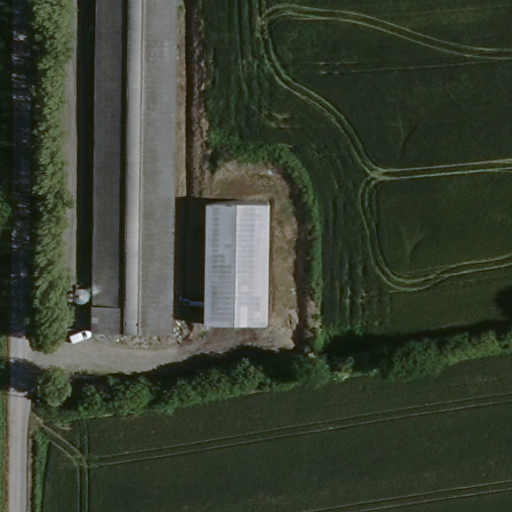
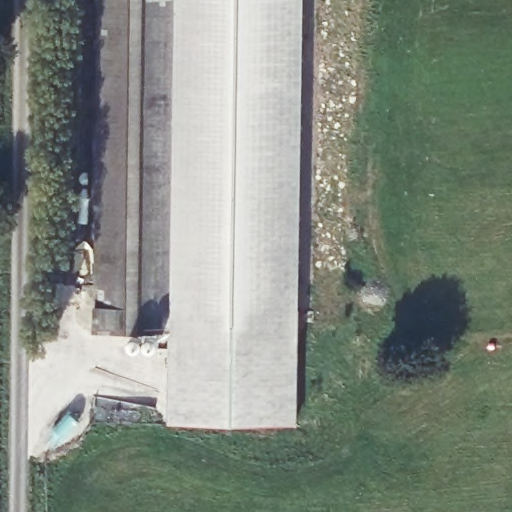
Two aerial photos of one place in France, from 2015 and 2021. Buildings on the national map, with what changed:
unchanged [(95,0),(174,0),(171,338),(92,337),(95,0)]
new [(169,422),(171,338),(174,0),(303,0),(297,423),(169,422)]
demolished [(210,202),(273,202),(269,322),(206,319),(210,202)]

